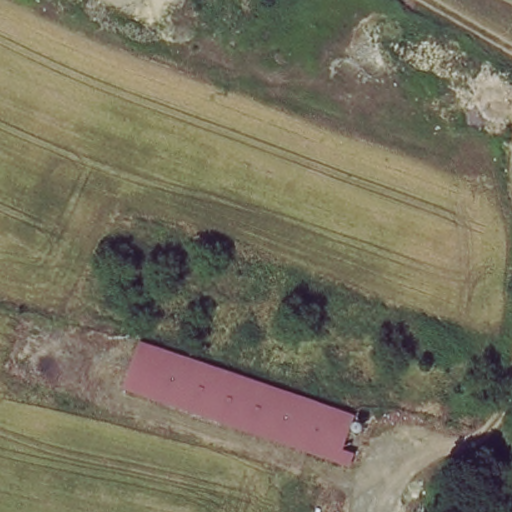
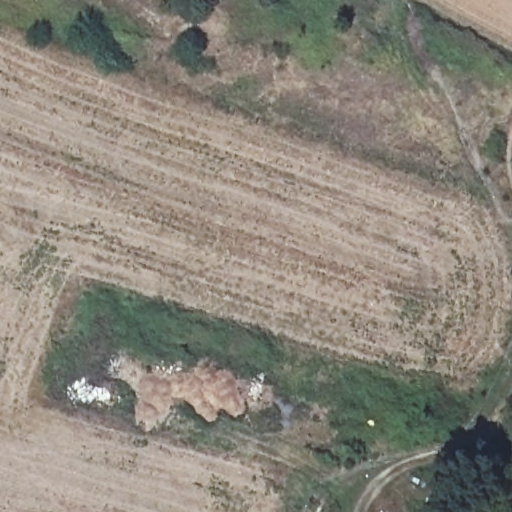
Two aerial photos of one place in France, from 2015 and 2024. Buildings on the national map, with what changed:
demolished [(344,465),(129,391),(144,345),(242,379),(359,420),(344,465)]

